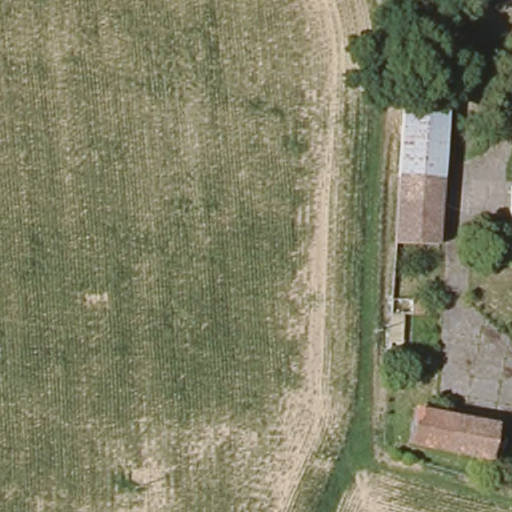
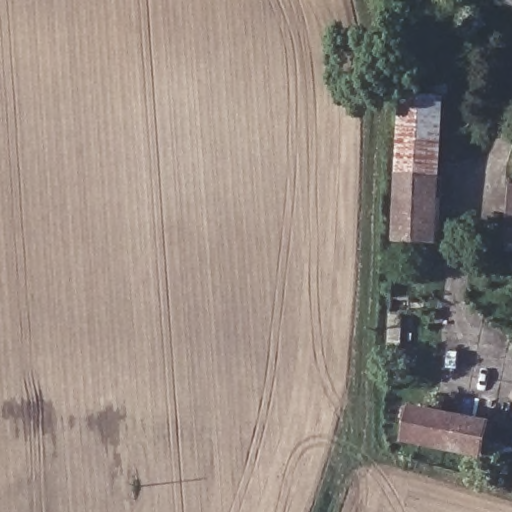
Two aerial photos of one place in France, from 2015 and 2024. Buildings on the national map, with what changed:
unchanged [(404,142),(405,96),(446,95),(445,143),(404,142)]
unchanged [(403,174),(404,142),(445,143),(443,175),(403,174)]
unchanged [(402,239),(403,174),(443,175),(441,242),(402,243),(402,239)]
unchanged [(509,188),(512,188),(512,251),(506,251),(509,188)]
unchanged [(415,364),(388,363),(395,301),(418,305),(415,364)]
unchanged [(490,427),(487,456),(411,440),(417,406),(490,427)]

